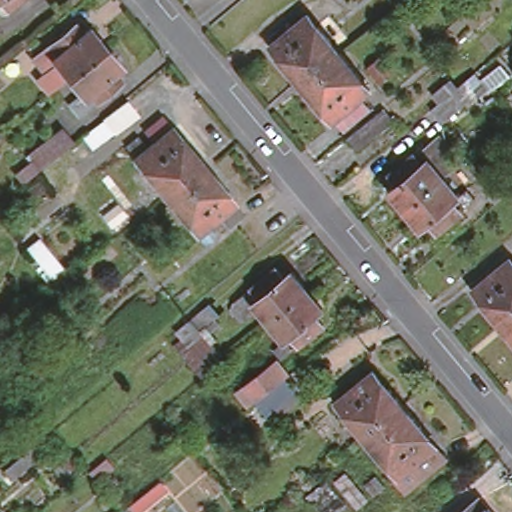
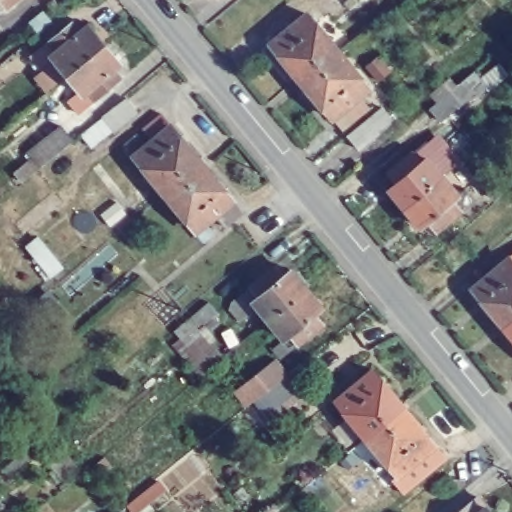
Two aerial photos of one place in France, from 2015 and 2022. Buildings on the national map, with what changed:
unchanged [(0,0),(14,0),(6,7),(0,0)]
unchanged [(323,108),(321,110),(300,82),(278,56),(280,55),(270,43),(272,41),(269,37),(286,23),(290,26),(304,15),(315,28),(316,26),(337,52),(359,80),(358,81),(366,91),(332,120),(323,108)]
unchanged [(95,42),(58,73),(42,53),(47,48),(40,39),(63,20),(71,29),(79,23),(95,42)]
unchanged [(58,98),(71,88),(58,73),(95,42),(110,61),(102,67),(111,78),(87,96),(69,111),(58,98)]
unchanged [(464,109),(443,126),(430,109),(450,92),(464,109)]
unchanged [(136,115),(112,133),(102,120),(126,101),(136,115)]
unchanged [(392,123),(358,151),(347,136),(381,109),(392,123)]
unchanged [(198,229),(188,216),(186,218),(165,193),(143,166),(145,164),(135,153),(152,139),(143,126),(160,113),(170,125),(180,136),(181,135),(203,162),(223,187),(222,189),(232,201),(241,212),(224,226),(215,215),(198,229)]
unchanged [(28,154),(40,145),(60,128),(72,143),(51,160),(40,169),(28,154)]
unchanged [(385,191),(391,185),(383,174),(407,155),(420,145),(430,156),(422,163),(436,180),(400,210),(385,191)]
unchanged [(512,187),(494,202),(483,189),(504,172),(512,181),(512,187)]
unchanged [(422,223),(415,229),(400,210),(436,180),(450,197),(459,190),(468,201),(454,213),(430,232),(422,223)]
unchanged [(475,297),(476,295),(467,284),(501,256),(511,268),(512,267),(512,343),(495,323),(475,297)]
unchanged [(236,312),(236,304),(255,288),(256,289),(280,270),(287,279),(295,273),(311,292),(273,323),(262,310),(245,324),(236,312)]
unchanged [(326,310),(318,317),(326,327),(303,347),(295,336),(288,341),(273,323),(311,292),(326,310)]
unchanged [(219,317),(198,334),(188,322),(209,305),(219,317)]
unchanged [(298,390),(265,417),(243,390),(277,363),(298,390)]
unchanged [(394,460),(392,462),(371,435),(349,408),(350,407),(341,396),(361,380),(376,367),(385,379),(387,377),(409,405),(430,431),(429,432),(438,443),(449,457),(428,474),(427,473),(405,490),(395,478),(403,472),(394,460)]
unchanged [(372,496),(362,504),(353,493),(364,484),(372,496)]
unchanged [(465,502),(472,495),(481,506),(486,512),(452,512),(465,502)]

